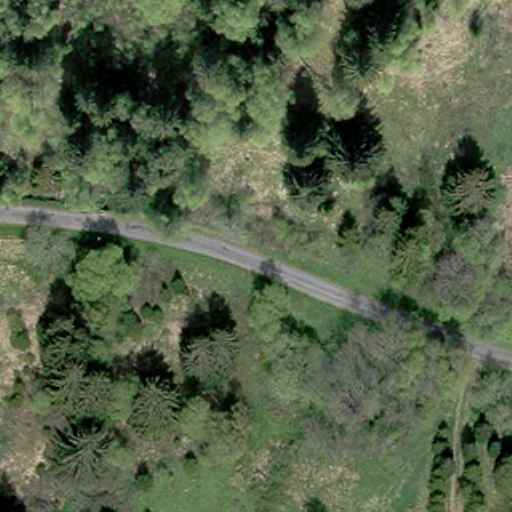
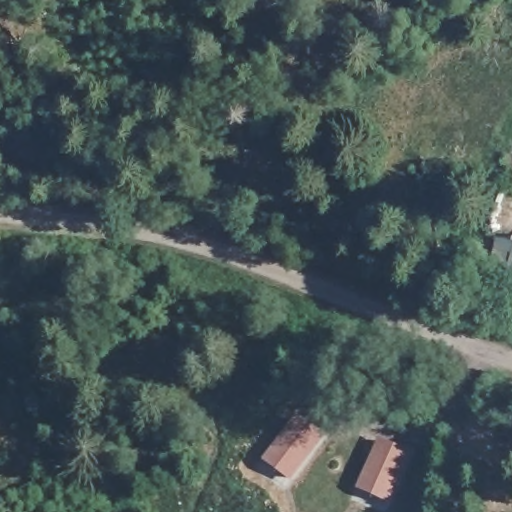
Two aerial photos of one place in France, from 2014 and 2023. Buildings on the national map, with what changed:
new [(291,480),(263,459),(296,415),(325,436),(291,480)]
new [(379,438),(412,452),(389,501),(357,487),(379,438)]

